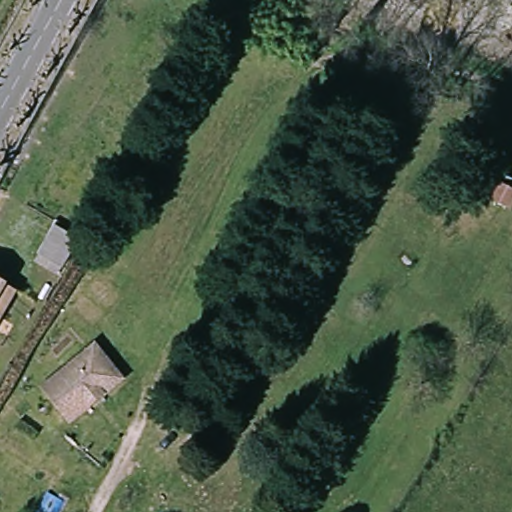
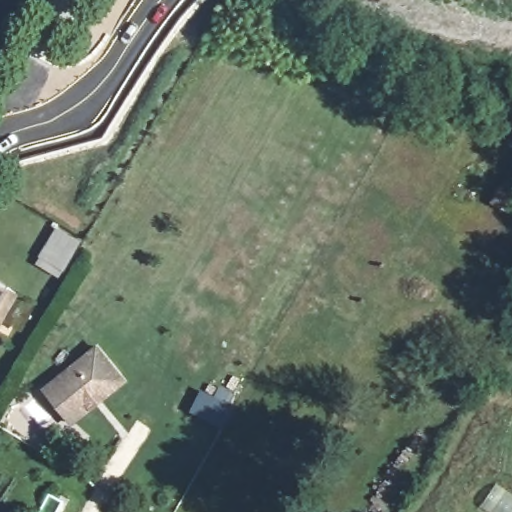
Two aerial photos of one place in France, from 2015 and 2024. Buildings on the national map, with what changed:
unchanged [(55,229),(78,242),(68,259),(61,270),(39,257),(46,245),(55,229)]
unchanged [(12,307),(0,326),(0,281),(20,293),(12,307)]
unchanged [(74,423),(48,390),(101,348),(127,381),(109,396),(94,407),(74,423)]
new [(219,387),(235,395),(230,404),(219,426),(190,411),(201,390),(213,396),(219,387)]
new [(480,508),(495,485),(512,497),(512,512),(485,512),(480,508)]

